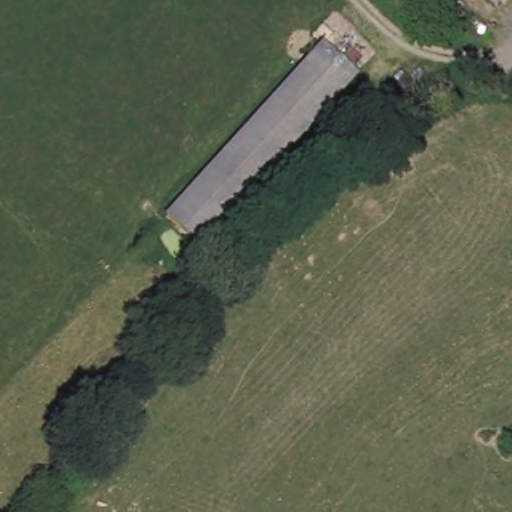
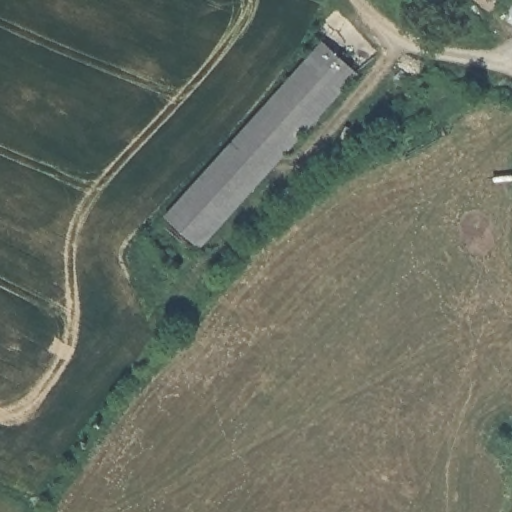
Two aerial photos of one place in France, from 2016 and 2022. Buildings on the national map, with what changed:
unchanged [(496,7),(488,0),(503,0),(497,7),(496,7)]
unchanged [(209,246),(175,216),(323,35),(357,65),(209,246)]

